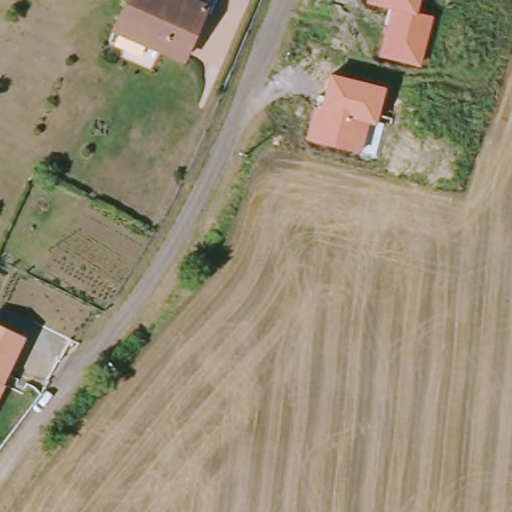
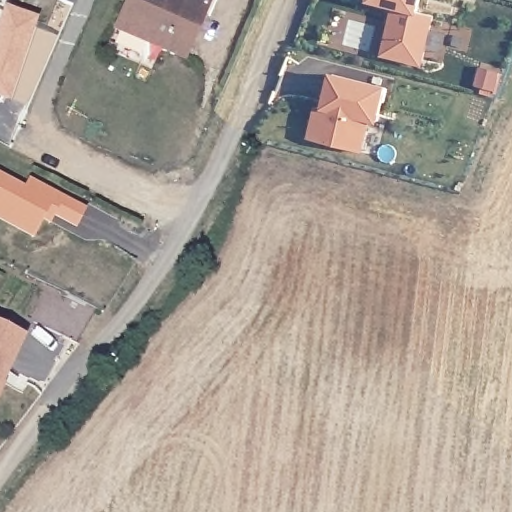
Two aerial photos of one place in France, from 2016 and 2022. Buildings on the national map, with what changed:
unchanged [(180,60),(110,30),(122,0),(190,0),(203,6),(180,60)]
unchanged [(432,16),(420,64),(378,54),(390,9),(365,2),(365,0),(421,0),(418,11),(432,16)]
new [(9,101),(0,98),(0,19),(3,8),(37,19),(9,101)]
unchanged [(385,89),(375,126),(368,125),(361,153),(305,137),(315,105),(322,107),(330,75),(385,89)]
new [(75,226),(55,216),(50,224),(43,220),(34,237),(0,219),(0,174),(24,187),(29,179),(86,209),(75,226)]
unchanged [(26,342),(6,380),(2,377),(0,382),(0,328),(26,342)]
unchanged [(4,390),(3,392),(0,397),(0,387),(4,390)]

